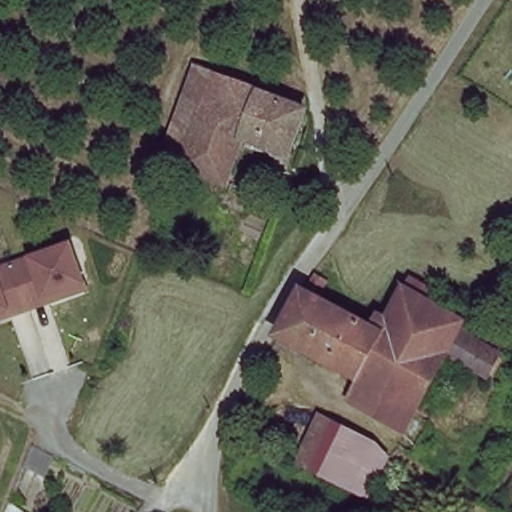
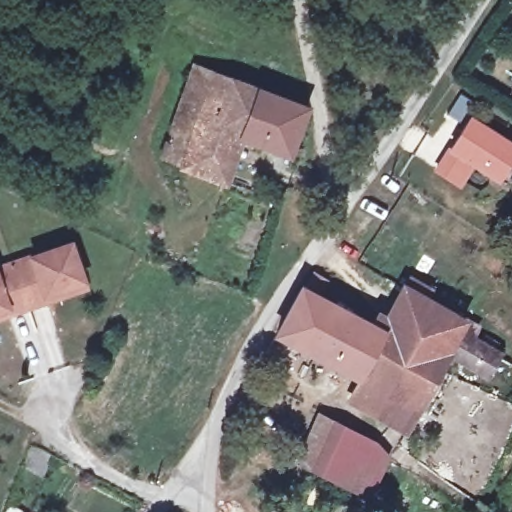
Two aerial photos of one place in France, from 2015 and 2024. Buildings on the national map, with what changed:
unchanged [(157,159),(193,62),(213,70),(179,167),(157,159)]
unchanged [(303,106),(290,145),(244,127),(225,184),(179,167),(213,70),(303,106)]
unchanged [(102,89),(125,97),(116,121),(94,112),(102,89)]
new [(445,149),(463,120),(445,114),(458,90),(472,98),(465,112),(512,142),(512,154),(494,181),(473,170),(460,189),(432,171),(445,149)]
unchanged [(85,285),(0,311),(0,257),(70,237),(85,285)]
unchanged [(418,413),(360,378),(269,325),(282,301),(304,262),(319,270),(306,292),(308,293),(369,326),(378,308),(394,280),(444,306),(472,321),(462,338),(470,342),(475,332),(492,341),(499,345),(492,355),(497,358),(487,377),(451,356),(418,413)]
unchanged [(404,437),(345,405),(360,378),(418,413),(404,437)]
unchanged [(291,450),(313,408),(356,431),(334,473),(291,450)]
unchanged [(397,463),(379,497),(334,473),(356,431),(397,463)]
unchanged [(6,504),(21,512),(2,512),(6,504)]

